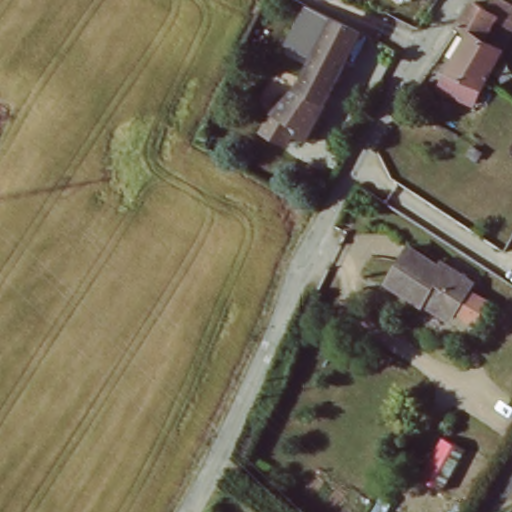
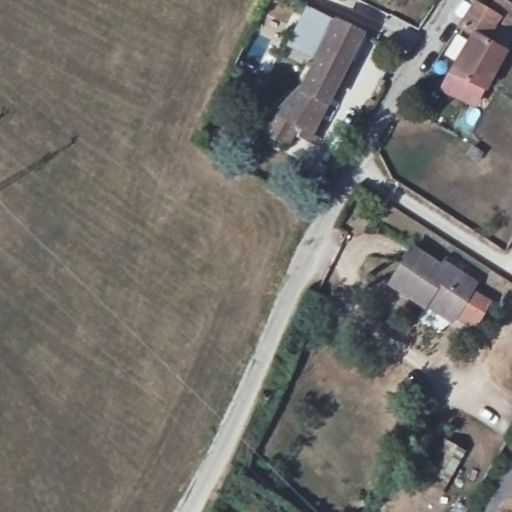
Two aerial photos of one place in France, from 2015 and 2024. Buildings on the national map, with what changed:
unchanged [(373,0),(394,0),(388,10),(373,0)]
unchanged [(474,105),(441,84),(458,56),(451,51),(458,39),(466,44),(473,32),(462,25),(469,14),(477,0),(481,0),(487,3),(493,6),(497,0),(506,0),(512,4),(512,44),(507,52),(487,84),(484,90),(474,105)]
unchanged [(268,141),(253,134),(262,119),(291,85),(295,86),(316,51),(290,36),(294,30),(309,4),(363,30),(356,45),(362,48),(364,54),(360,60),(354,62),(348,58),(311,120),(319,122),(309,141),(301,137),(300,140),(291,135),(296,127),(289,124),(276,145),(268,141)]
unchanged [(423,299),(419,305),(385,283),(391,273),(409,246),(443,267),(447,262),(476,280),(454,312),(451,317),(423,299)]
unchanged [(466,450),(446,491),(424,480),(444,440),(466,450)]

